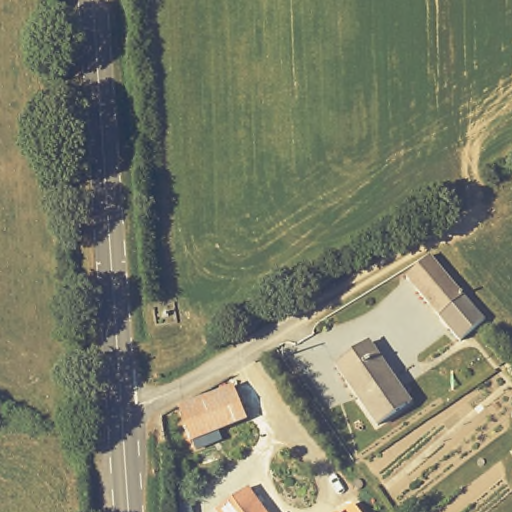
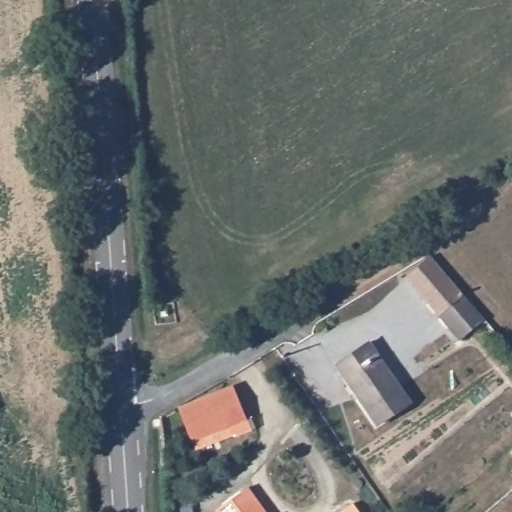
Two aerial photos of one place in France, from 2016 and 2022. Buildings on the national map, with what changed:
unchanged [(410,277),(438,255),(440,258),(469,293),(443,316),(410,277)]
unchanged [(377,427),(355,397),(357,396),(345,376),(342,378),(334,365),(368,341),(412,402),(377,427)]
unchanged [(232,385),(247,419),(190,442),(176,405),(232,385)]
unchanged [(247,487),(264,512),(216,512),(215,511),(247,487)]
unchanged [(358,512),(340,512),(352,503),(358,512)]

